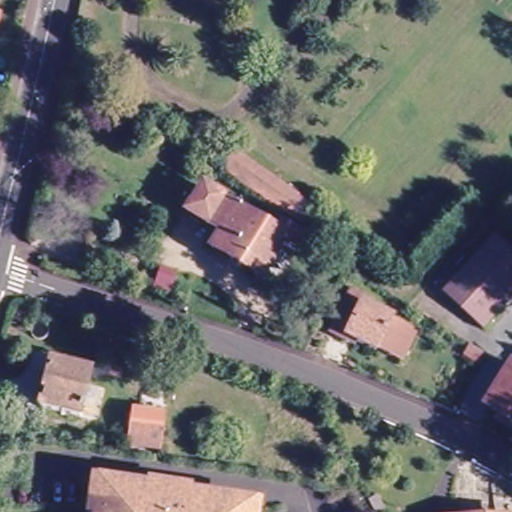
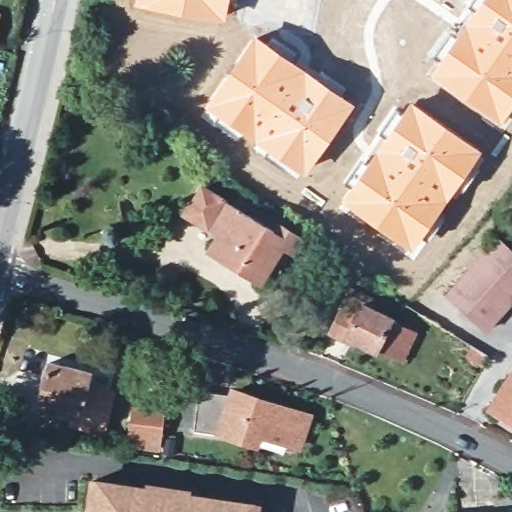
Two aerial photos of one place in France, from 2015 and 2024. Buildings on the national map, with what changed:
new [(228,0),(224,20),(134,4),(134,0),(228,0)]
new [(512,0),(512,109),(500,125),(428,74),(478,0),(512,0)]
unchanged [(0,45),(0,16),(6,17),(0,45)]
new [(253,34),(296,62),(355,103),(303,175),(270,155),(203,106),(253,34)]
new [(376,146),(410,100),(483,150),(463,180),(413,250),(341,203),(376,146)]
unchanged [(308,209),(297,224),(219,170),(230,155),(308,209)]
unchanged [(210,241),(216,232),(183,212),(197,187),(272,232),(276,225),(298,238),(290,251),(277,244),(256,278),(224,258),(206,247),(210,241)]
demolished [(65,255),(31,230),(62,188),(96,216),(65,255)]
unchanged [(446,294),(498,237),(512,251),(512,302),(487,330),(446,294)]
unchanged [(395,356),(377,348),(375,351),(347,337),(346,340),(331,333),(351,290),(374,300),(370,309),(391,318),(389,321),(407,330),(414,333),(402,360),(395,356)]
unchanged [(468,355),(474,346),(487,355),(482,363),(468,355)]
unchanged [(78,416),(39,407),(50,362),(89,372),(78,416)]
unchanged [(504,415),(491,407),(512,373),(512,428),(501,420),(504,415)]
unchanged [(227,394),(230,385),(314,412),(302,449),(263,437),(259,447),(215,432),(193,430),(198,390),(227,394)]
unchanged [(145,416),(163,418),(160,448),(141,445),(130,445),(133,415),(145,416)]
unchanged [(88,481),(100,483),(144,490),(181,495),(240,504),(253,505),(251,512),(83,512),(88,481)]

